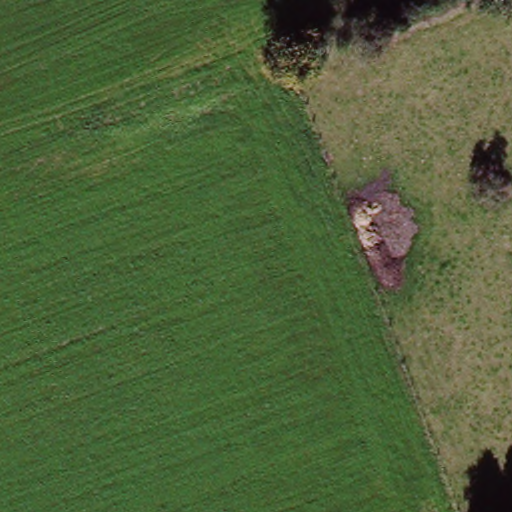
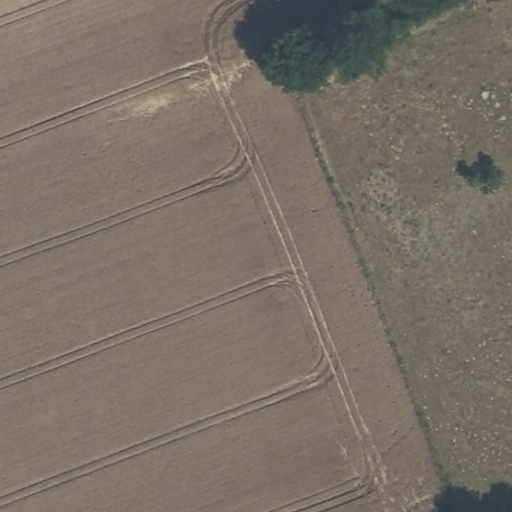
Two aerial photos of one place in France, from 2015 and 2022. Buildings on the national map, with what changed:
[]

